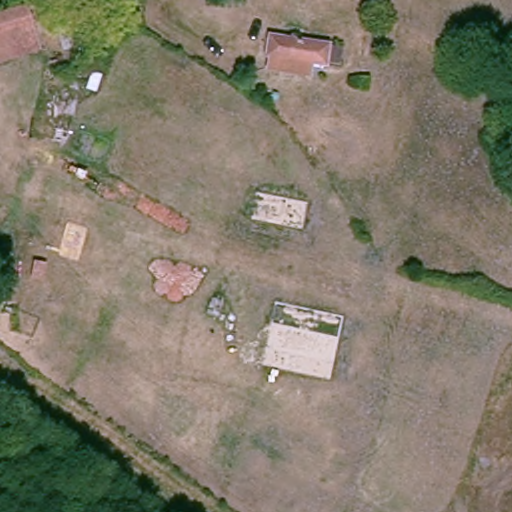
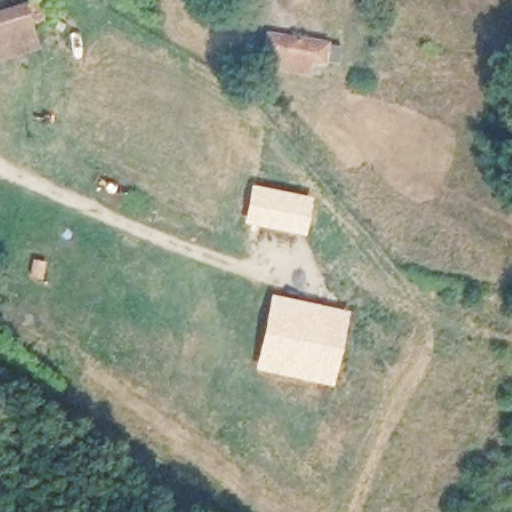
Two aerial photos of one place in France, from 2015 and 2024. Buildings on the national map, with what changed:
unchanged [(0,33),(0,9),(19,3),(25,26),(0,33)]
unchanged [(41,50),(0,62),(0,37),(32,27),(41,50)]
unchanged [(327,41),(342,44),(338,65),(327,63),(312,62),(310,76),(257,71),(265,30),(327,41)]
new [(251,184),(312,196),(305,235),(243,222),(251,184)]
new [(332,386),(255,369),(271,295),(348,311),(332,386)]

